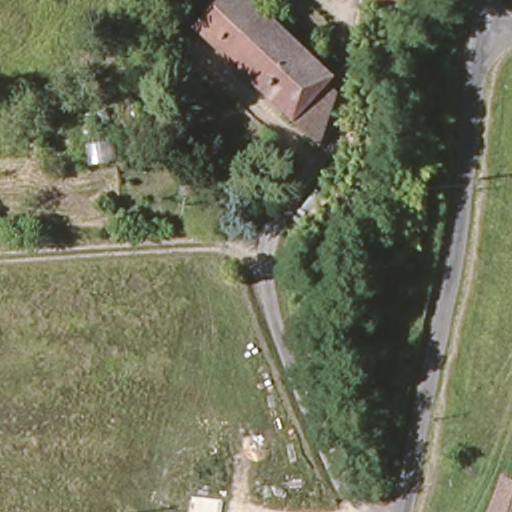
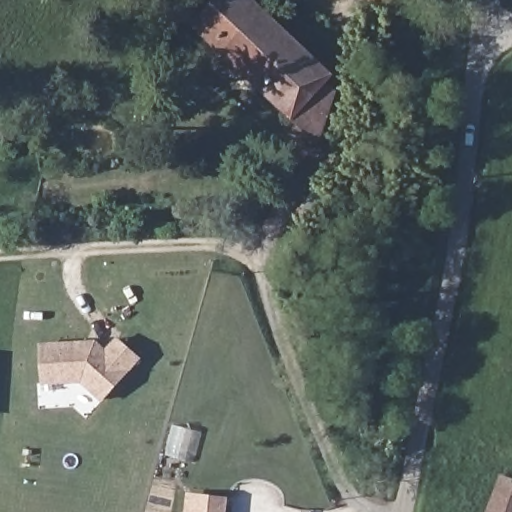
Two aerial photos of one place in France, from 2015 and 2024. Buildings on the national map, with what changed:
unchanged [(198,33),(227,0),(250,0),(337,80),(329,89),(337,96),(318,146),(198,33)]
unchanged [(396,7),(379,0),(400,0),(396,7)]
unchanged [(365,126),(351,151),(341,145),(353,121),(365,126)]
new [(92,343),(93,351),(100,356),(114,341),(136,361),(99,401),(78,383),(40,385),(38,347),(92,343)]
unchanged [(512,512),(492,512),(504,478),(512,480),(512,512)]
new [(229,497),(227,512),(186,512),(187,493),(229,497)]

